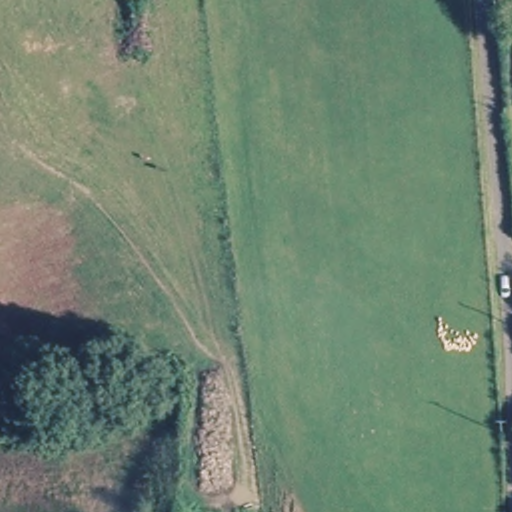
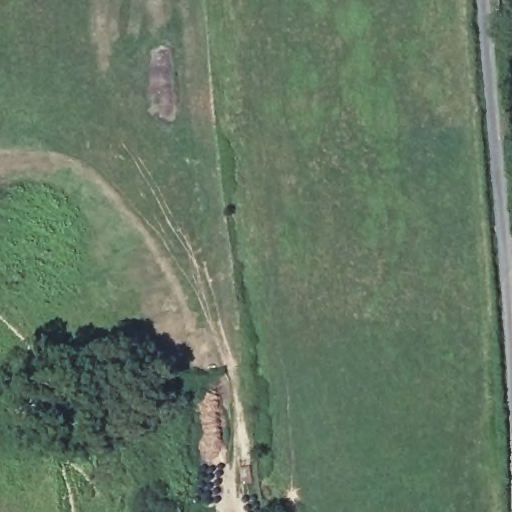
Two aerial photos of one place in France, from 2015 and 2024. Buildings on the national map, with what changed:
[]

